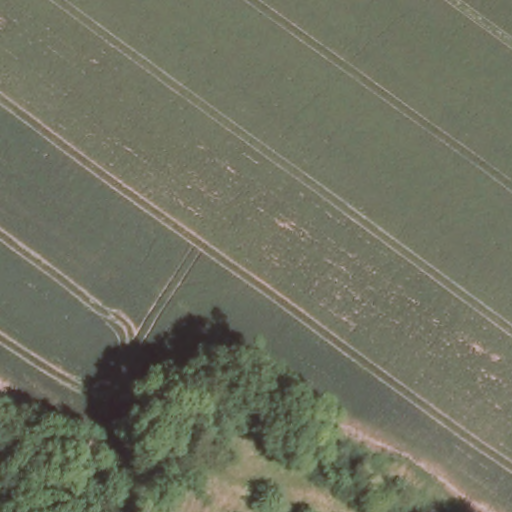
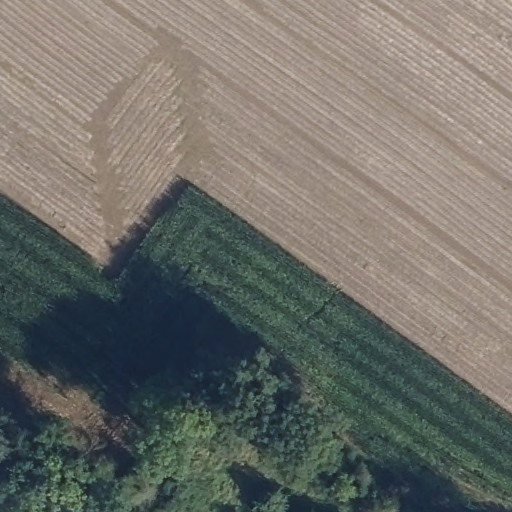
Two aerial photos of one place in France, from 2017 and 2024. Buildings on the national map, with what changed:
unchanged [(426,1),(419,11),(403,0),(425,0),(426,1)]

